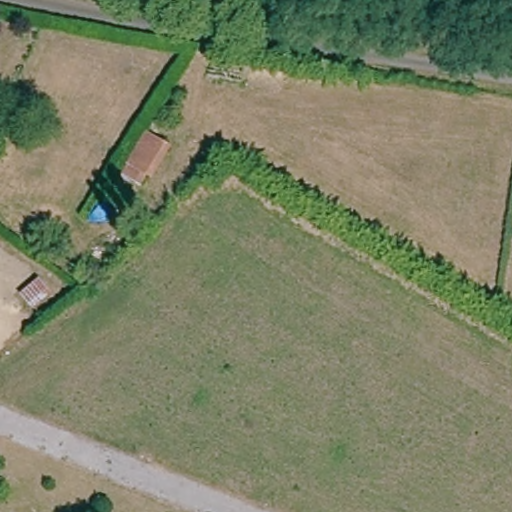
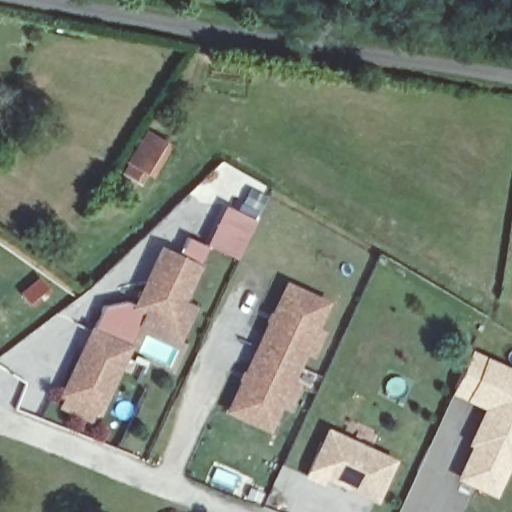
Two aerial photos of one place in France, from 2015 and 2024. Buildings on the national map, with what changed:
unchanged [(154,179),(130,167),(143,140),(166,151),(154,179)]
new [(63,393),(105,305),(129,300),(138,304),(165,248),(181,256),(191,237),(210,246),(183,303),(194,308),(179,340),(142,322),(99,411),(95,408),(91,417),(64,405),(68,396),(63,393)]
unchanged [(47,290),(31,303),(24,291),(40,280),(47,290)]
new [(314,354),(306,351),(299,367),(260,348),(290,286),(328,304),(316,331),(323,334),(314,354)]
new [(290,406),(282,402),(270,428),(231,410),(260,348),(299,367),(292,382),(299,386),(290,406)]
new [(512,368),(512,466),(510,465),(494,497),(454,478),(470,447),(466,445),(483,408),(451,393),(471,350),(512,368)]
new [(322,483),(308,476),(319,452),(321,452),(330,432),(394,462),(376,501),(349,487),(325,477),(322,483)]

